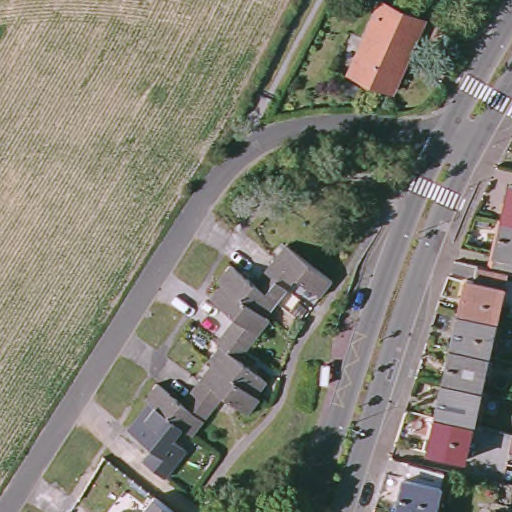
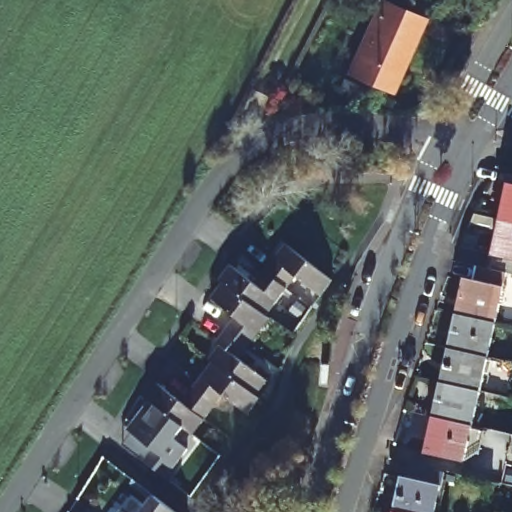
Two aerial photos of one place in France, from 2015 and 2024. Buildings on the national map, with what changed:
unchanged [(376,0),(388,0),(420,15),(387,86),(346,68),(376,0)]
unchanged [(490,263),(498,227),(501,213),(505,198),(510,178),(512,178),(512,268),(507,266),(490,263)]
unchanged [(148,397),(145,393),(157,377),(181,396),(211,356),(208,353),(220,339),(215,336),(235,311),(211,292),(222,277),(218,275),(230,259),(255,278),(286,239),(333,275),(321,290),(296,271),(267,310),(270,313),(240,353),(268,375),(256,390),(260,392),(247,408),(223,390),(192,430),(184,423),(183,422),(174,434),(187,445),(166,472),(151,461),(150,460),(143,455),(152,442),(128,423),(148,397)]
unchanged [(438,397),(443,376),(446,363),(450,342),(454,328),(458,307),(461,293),(466,273),(473,275),(477,260),(488,262),(490,263),(507,266),(496,316),(488,351),(480,385),(472,419),(465,455),(433,447),(427,446),(431,430),(435,410),(438,397)]
unchanged [(400,497),(404,476),(405,476),(410,461),(443,469),(440,485),(442,486),(436,512),(396,512),(396,510),(400,497)]
unchanged [(152,512),(132,512),(140,502),(152,512)]
unchanged [(126,512),(110,512),(116,504),(126,512)]

